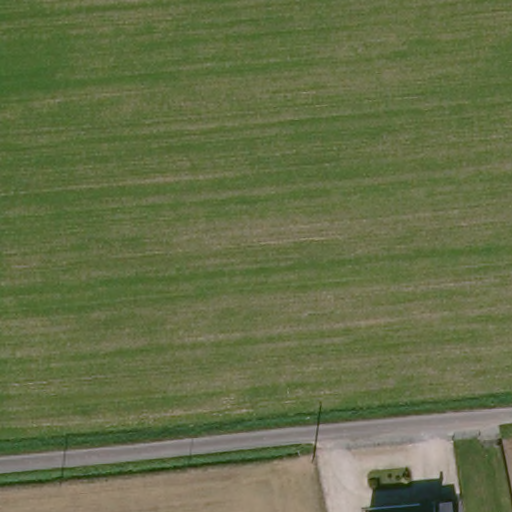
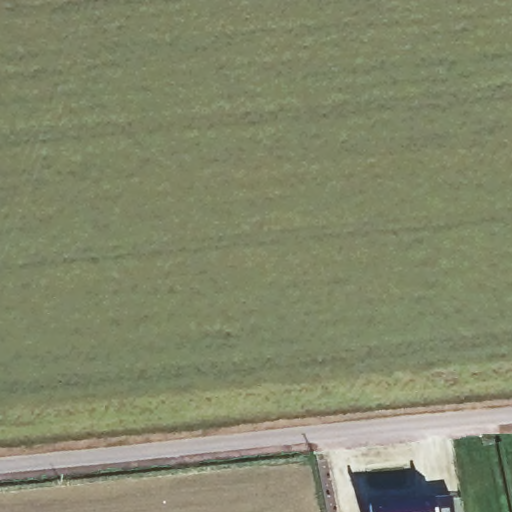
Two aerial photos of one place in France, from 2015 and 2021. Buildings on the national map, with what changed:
unchanged [(440,495),(447,493),(450,512),(367,512),(366,509),(440,495)]

